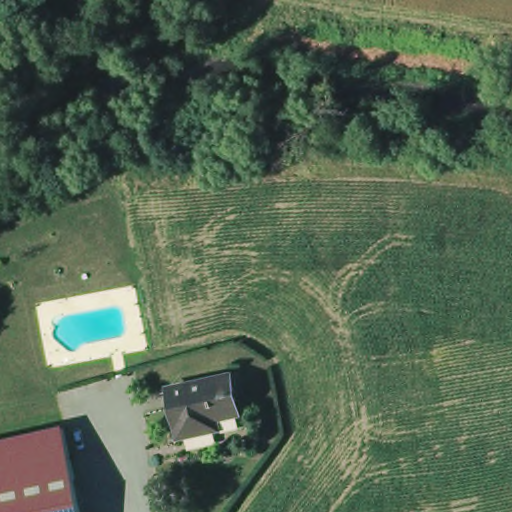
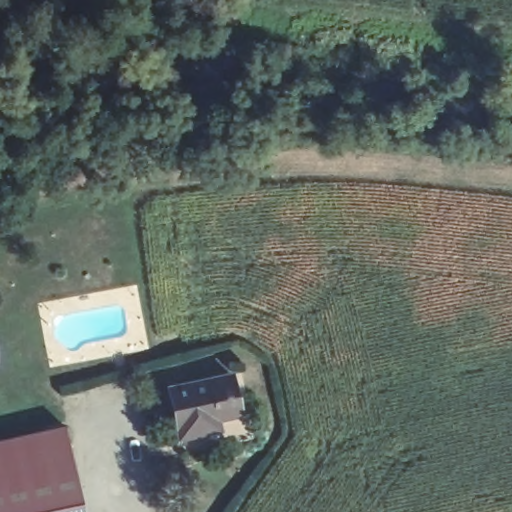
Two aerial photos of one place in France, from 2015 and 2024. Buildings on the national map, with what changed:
unchanged [(241,367),(256,434),(186,450),(182,431),(218,423),(217,413),(240,406),(233,369),(241,367)]
unchanged [(240,406),(217,413),(218,423),(182,431),(171,382),(233,369),(240,406)]
unchanged [(0,512),(0,443),(70,427),(89,512),(0,512)]

